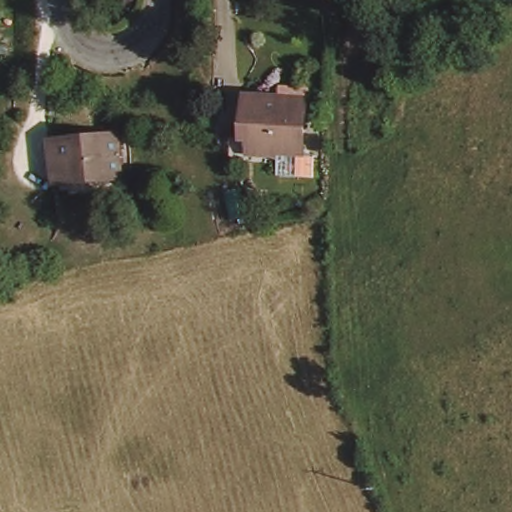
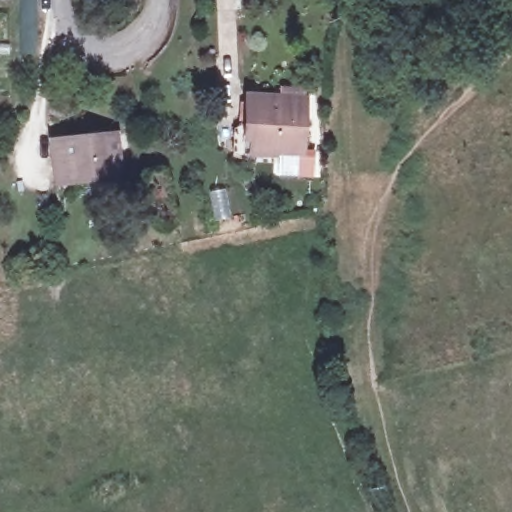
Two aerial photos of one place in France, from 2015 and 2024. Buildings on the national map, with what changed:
unchanged [(278,88),(303,89),(299,144),(251,143),(251,115),(239,114),(241,93),(253,94),(278,94),(278,88)]
unchanged [(124,177),(60,182),(57,142),(120,136),(124,177)]

